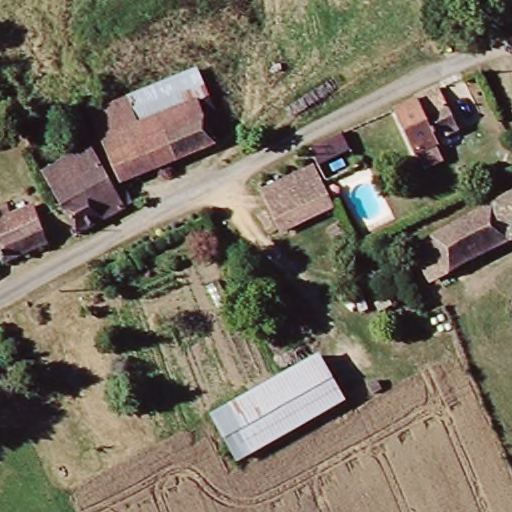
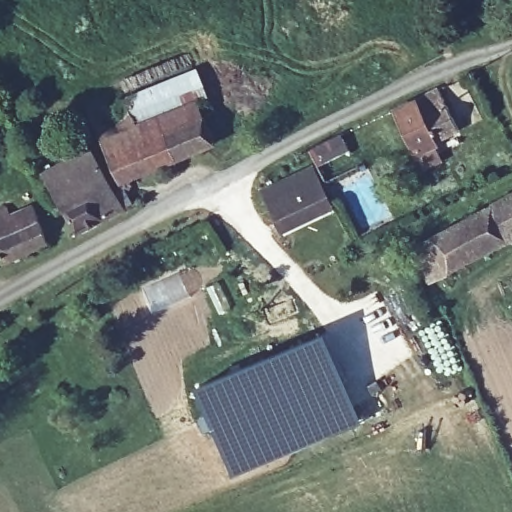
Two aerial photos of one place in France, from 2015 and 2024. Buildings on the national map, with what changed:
unchanged [(130,105),(199,74),(209,96),(140,126),(130,105)]
unchanged [(462,126),(436,138),(438,145),(419,154),(397,107),(443,86),(462,126)]
unchanged [(140,126),(209,96),(217,114),(205,119),(215,142),(123,181),(94,111),(103,107),(107,116),(130,105),(140,126)]
unchanged [(321,164),(313,149),(351,131),(358,146),(321,164)]
unchanged [(130,208),(80,233),(46,169),(93,143),(130,208)]
unchanged [(263,214),(276,208),(268,191),(321,164),(341,205),(275,237),(263,214)]
unchanged [(512,185),(508,176),(512,174),(512,185)]
unchanged [(512,199),(512,240),(437,279),(420,247),(512,199)]
unchanged [(51,241),(8,263),(0,249),(0,224),(33,207),(51,241)]
unchanged [(318,359),(342,403),(240,457),(216,413),(318,359)]

